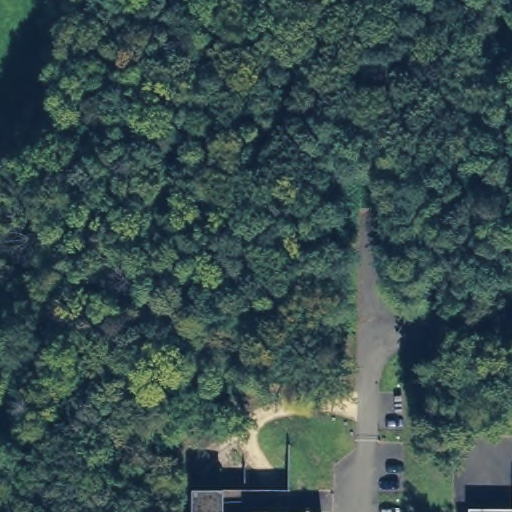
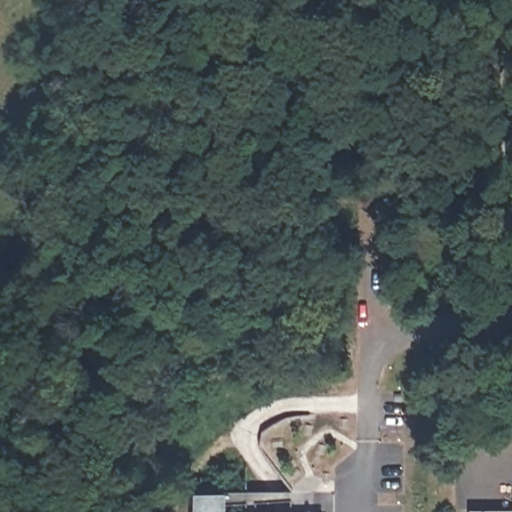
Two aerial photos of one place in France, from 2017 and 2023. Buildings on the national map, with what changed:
unchanged [(512,507),(512,512),(468,512),(469,507),(512,507)]

